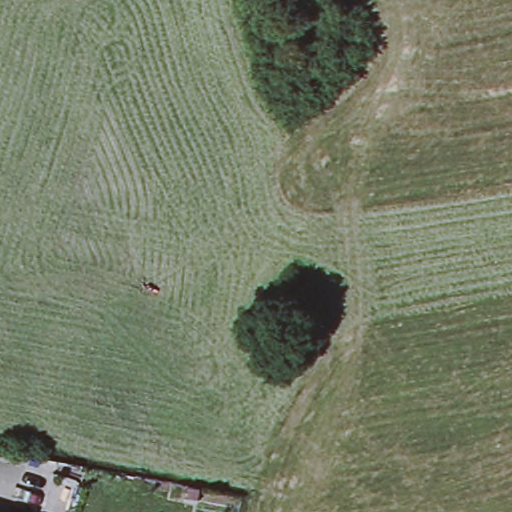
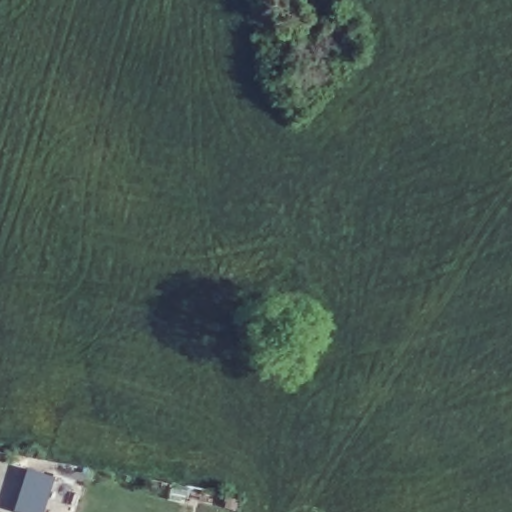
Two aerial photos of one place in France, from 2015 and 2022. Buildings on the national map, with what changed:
new [(55,477),(44,512),(16,512),(28,469),(55,477)]

